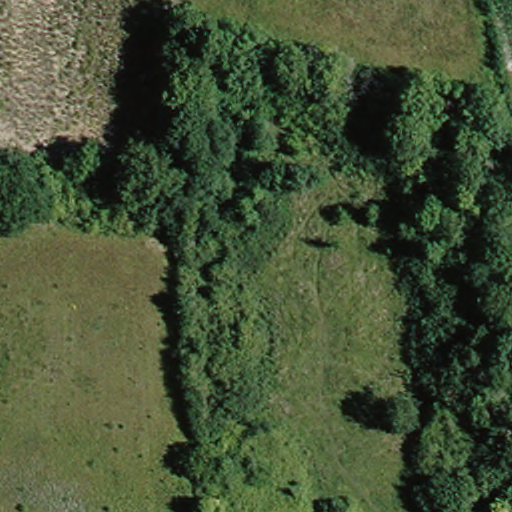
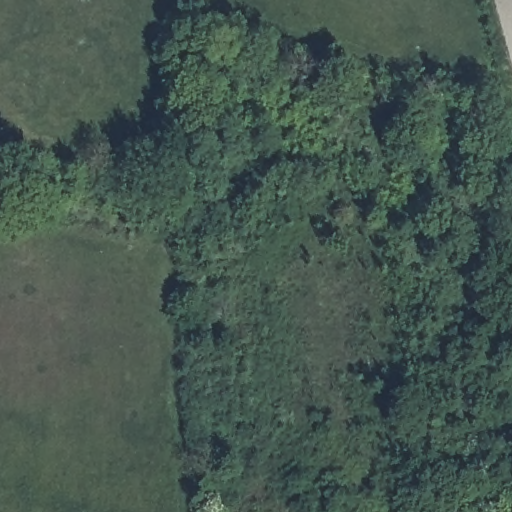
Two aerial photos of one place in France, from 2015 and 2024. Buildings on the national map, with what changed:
[]

